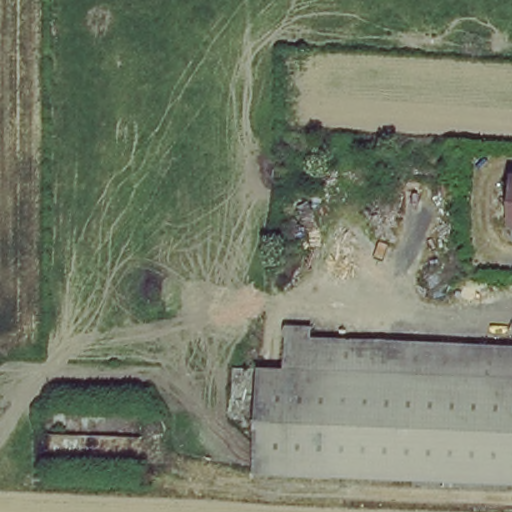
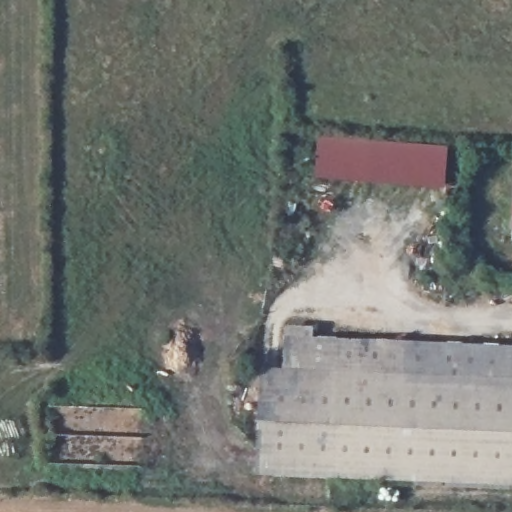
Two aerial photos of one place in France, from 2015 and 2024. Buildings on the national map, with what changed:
new [(317,134),(448,145),(445,189),(344,182),(312,177),(317,134)]
unchanged [(332,340),(512,344),(512,374),(332,370),(332,364),(332,340)]
unchanged [(253,474),(255,369),(332,370),(512,374),(512,478),(253,474)]

